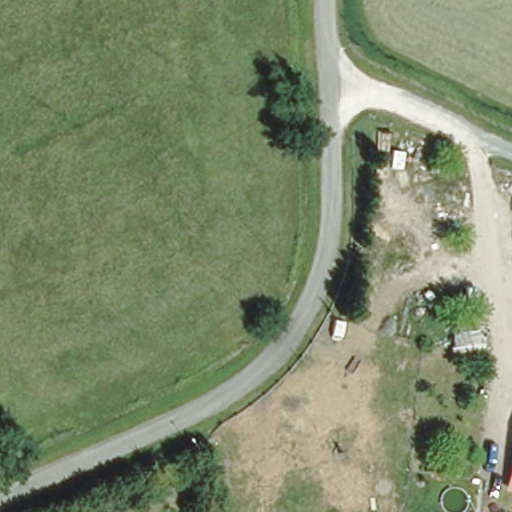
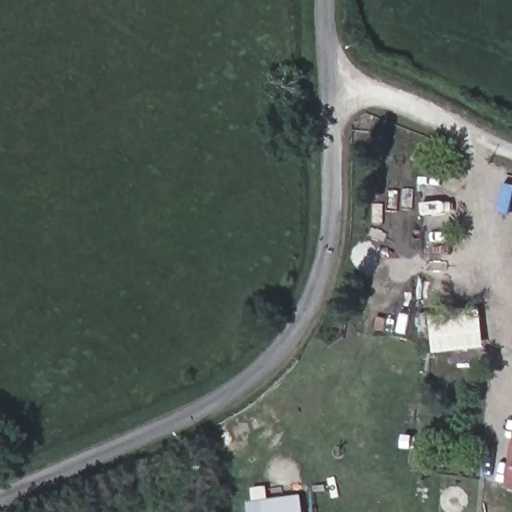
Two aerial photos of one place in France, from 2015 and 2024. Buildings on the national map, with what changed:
unchanged [(482,312),(486,355),(456,357),(453,314),(482,312)]
unchanged [(506,493),(512,461),(512,494),(506,493)]
new [(250,502),(302,496),(304,512),(251,512),(250,502)]

